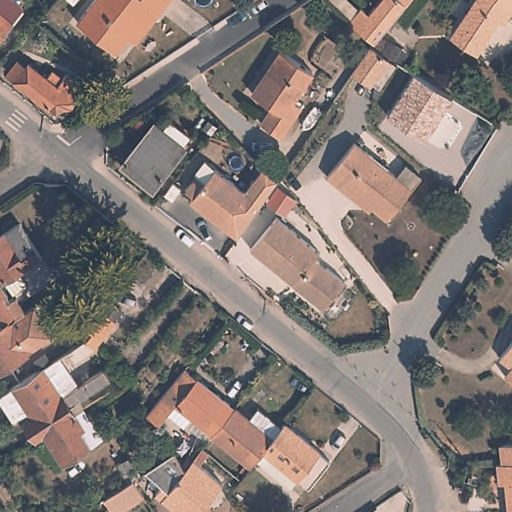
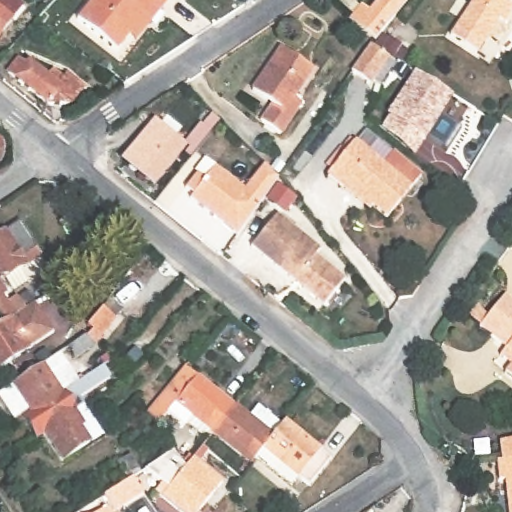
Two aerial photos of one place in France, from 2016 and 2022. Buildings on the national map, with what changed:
unchanged [(22,6),(0,35),(0,0),(14,0),(22,6)]
unchanged [(129,39),(116,55),(77,23),(97,0),(173,0),(160,14),(137,45),(129,39)]
unchanged [(371,46),(367,42),(348,25),(360,10),(368,16),(382,0),(407,0),(395,14),(371,46)]
unchanged [(512,16),(500,32),(494,29),(472,63),(445,45),(475,0),(512,0),(512,16)]
unchanged [(295,106),(274,137),(257,125),(268,108),(248,94),(276,52),(307,73),(289,101),(295,106)]
unchanged [(392,67),(372,96),(353,84),(373,55),(392,67)]
unchanged [(426,140),(387,113),(414,73),(452,97),(426,140)]
unchanged [(67,118),(51,119),(10,85),(18,74),(24,79),(28,74),(46,89),(52,82),(62,89),(66,85),(83,99),(67,118)]
unchanged [(201,125),(207,119),(215,125),(209,132),(201,125)]
unchanged [(124,163),(153,125),(184,150),(154,187),(124,163)]
unchanged [(387,224),(348,190),(344,194),(329,180),(358,147),(413,195),(387,224)]
unchanged [(264,166),(277,180),(236,238),(189,201),(192,197),(185,190),(196,176),(204,182),(214,169),(244,192),(264,166)]
unchanged [(321,253),(317,259),(346,284),(322,312),(249,251),(275,216),(321,253)]
unchanged [(15,225),(36,258),(13,272),(22,285),(8,294),(0,283),(0,235),(15,225)]
unchanged [(2,296),(0,298),(0,293),(2,296)]
new [(486,317),(504,296),(512,302),(512,344),(507,351),(477,328),(478,327),(466,318),(474,307),(486,317)]
unchanged [(0,353),(0,301),(2,305),(10,299),(19,312),(31,304),(51,334),(6,363),(0,353)]
unchanged [(69,353),(84,342),(86,343),(92,337),(87,331),(109,305),(122,316),(97,349),(76,363),(69,353)]
unchanged [(498,362),(512,344),(512,373),(511,372),(498,362)]
unchanged [(6,363),(0,367),(0,353),(6,363)]
unchanged [(22,384),(53,364),(53,363),(60,359),(78,389),(65,398),(32,419),(31,417),(16,426),(0,403),(0,399),(7,394),(12,390),(22,384)]
unchanged [(187,421),(180,429),(164,416),(154,428),(140,417),(179,370),(229,411),(212,432),(208,437),(187,421)]
unchanged [(65,425),(44,439),(37,443),(24,424),(32,419),(65,398),(78,389),(103,373),(110,382),(80,403),(85,412),(65,425)]
unchanged [(208,437),(212,432),(229,411),(268,441),(255,457),(252,460),(246,467),(208,437)]
unchanged [(103,441),(63,466),(44,439),(65,425),(85,412),(103,441)]
unchanged [(323,461),(302,487),(294,481),(288,488),(252,460),(255,457),(268,441),(279,427),(323,461)]
unchanged [(499,485),(498,465),(502,465),(500,446),(512,445),(512,512),(508,512),(505,484),(499,485)]
unchanged [(162,492),(138,474),(166,456),(179,472),(197,450),(203,455),(194,468),(215,485),(195,511),(194,512),(171,512),(156,500),(162,492)]
unchanged [(124,482),(119,473),(129,467),(134,476),(124,482)]
unchanged [(109,512),(104,504),(131,487),(140,500),(123,512),(109,512)]

